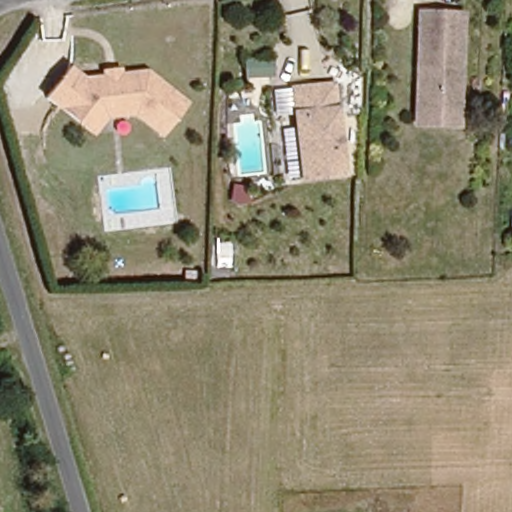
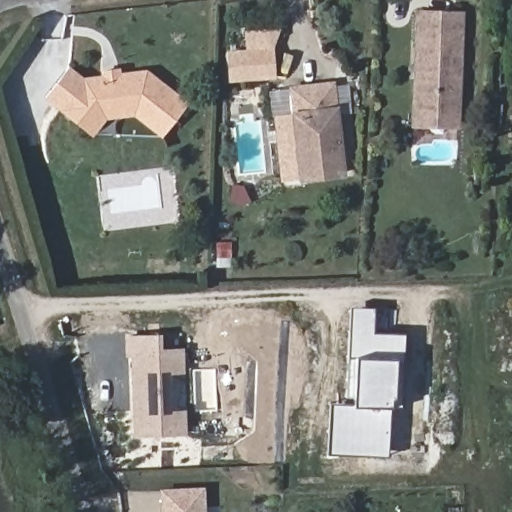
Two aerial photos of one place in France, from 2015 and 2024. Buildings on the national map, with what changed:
unchanged [(410,123),(411,110),(412,78),(412,65),(415,11),(457,13),(454,111),(453,124),(410,123)]
new [(273,48),(275,79),(228,81),(226,49),(273,48)]
unchanged [(80,117),(49,93),(70,65),(84,75),(105,73),(104,68),(120,66),(121,71),(148,68),(189,99),(166,129),(138,109),(109,113),(95,129),(80,117)]
unchanged [(340,173),(300,178),(293,113),(291,88),(312,85),(331,84),(340,173)]
new [(326,454),(329,403),(352,404),(352,396),(346,396),(347,356),(350,306),(373,308),(372,333),(406,334),(403,361),(397,361),(392,406),(389,406),(388,458),(326,454)]
new [(161,340),(162,349),(183,349),(184,374),(169,375),(170,410),(185,409),(187,436),(132,438),(130,357),(125,358),(124,335),(156,334),(156,340),(161,340)]
new [(164,509),(163,492),(203,490),(204,508),(204,512),(164,512),(164,509)]

